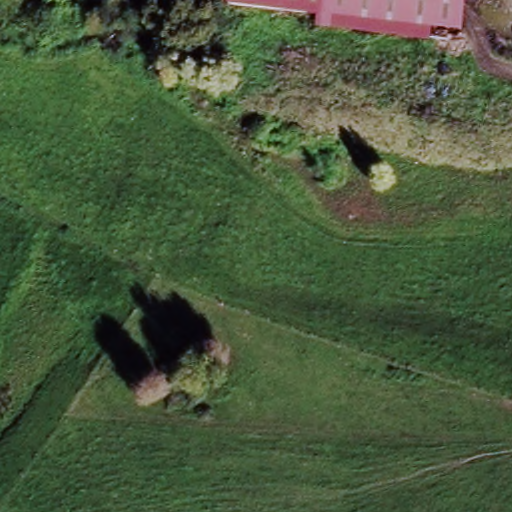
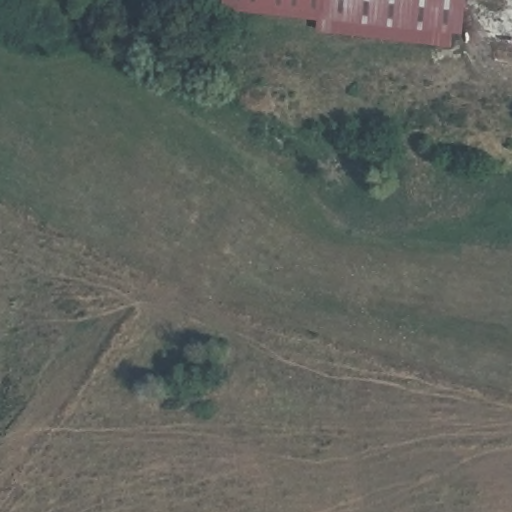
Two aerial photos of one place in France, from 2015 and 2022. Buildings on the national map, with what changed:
unchanged [(235,7),(226,6),(226,0),(327,0),(326,16),(235,7)]
unchanged [(327,0),(470,0),(467,33),(326,16),(327,0)]

